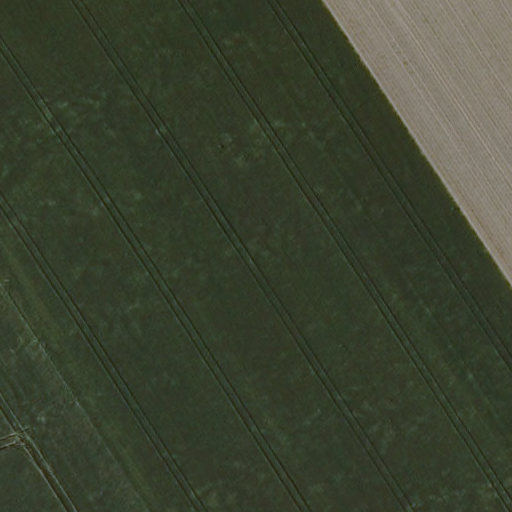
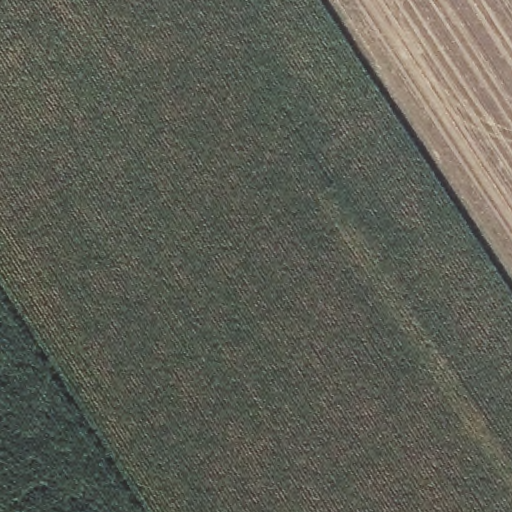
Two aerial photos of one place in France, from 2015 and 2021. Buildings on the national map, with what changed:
[]

